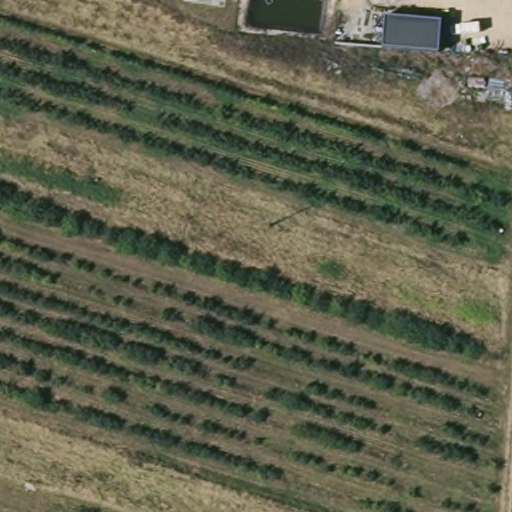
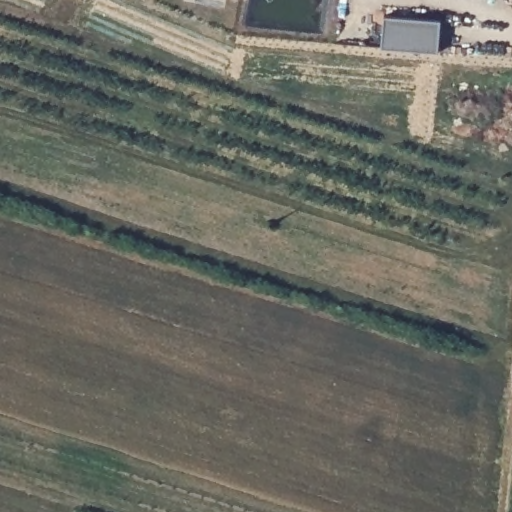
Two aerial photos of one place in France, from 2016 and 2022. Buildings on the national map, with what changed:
unchanged [(442,19),(439,52),(380,48),(383,14),(442,19)]

